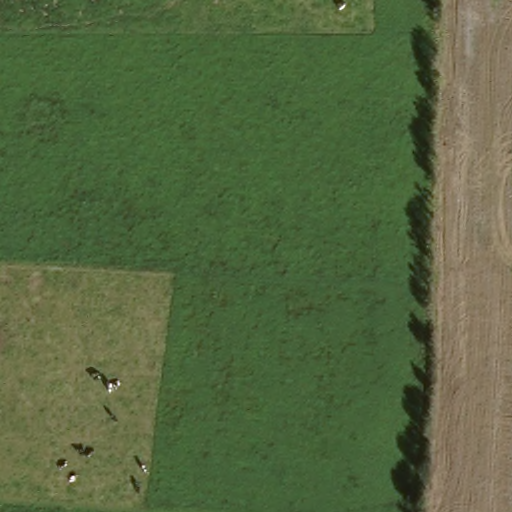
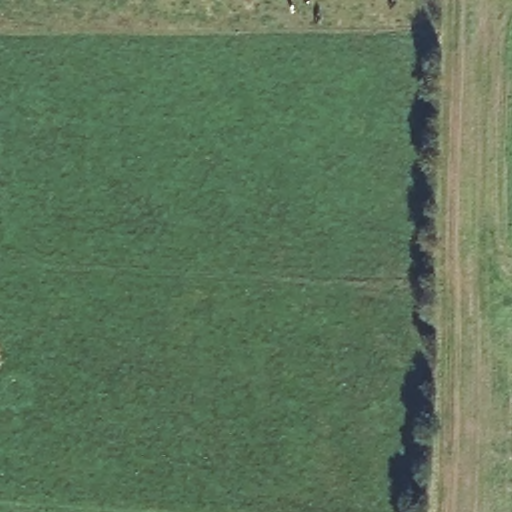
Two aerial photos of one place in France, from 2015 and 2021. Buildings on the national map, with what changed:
[]

